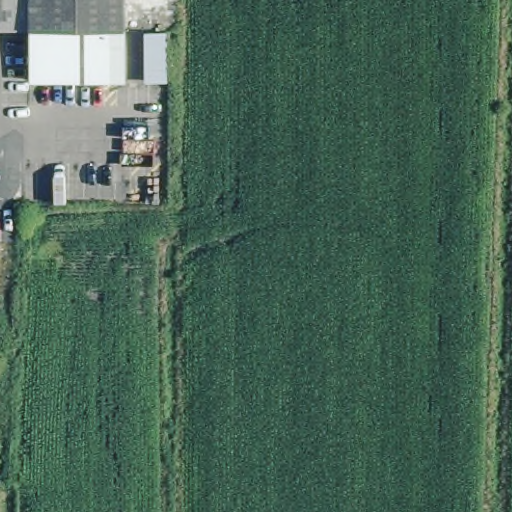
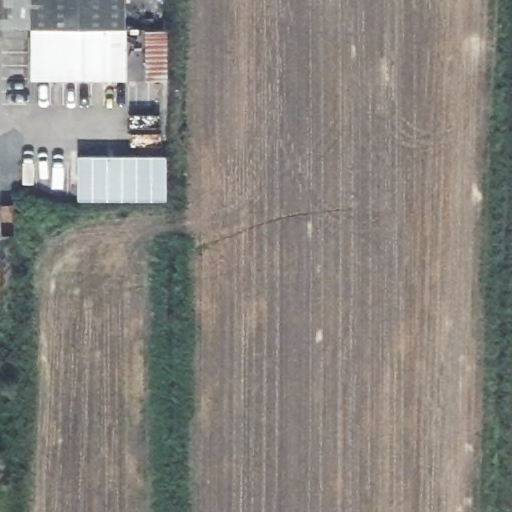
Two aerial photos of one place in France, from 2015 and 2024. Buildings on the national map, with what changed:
unchanged [(5,29),(4,0),(40,0),(40,26),(5,29)]
unchanged [(127,0),(127,34),(40,33),(40,0),(127,0)]
unchanged [(165,29),(165,75),(144,75),(143,29),(165,29)]
unchanged [(127,34),(127,80),(40,82),(40,33),(127,34)]
new [(166,202),(78,202),(78,157),(166,157),(166,202)]

